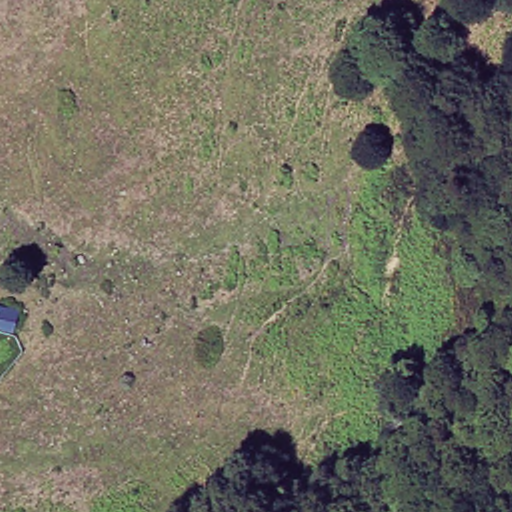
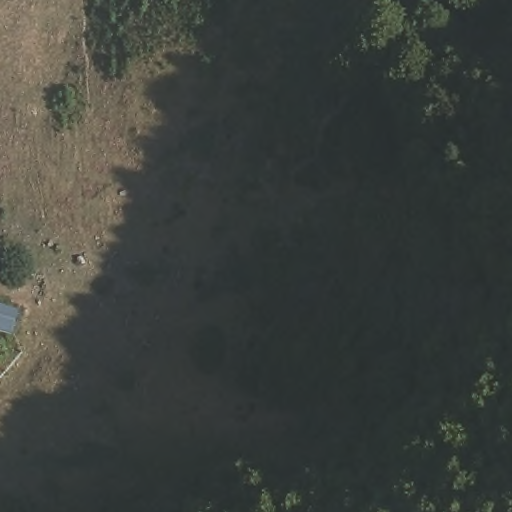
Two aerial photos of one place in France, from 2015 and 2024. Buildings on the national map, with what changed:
unchanged [(15,327),(0,325),(0,305),(19,310),(15,327)]

